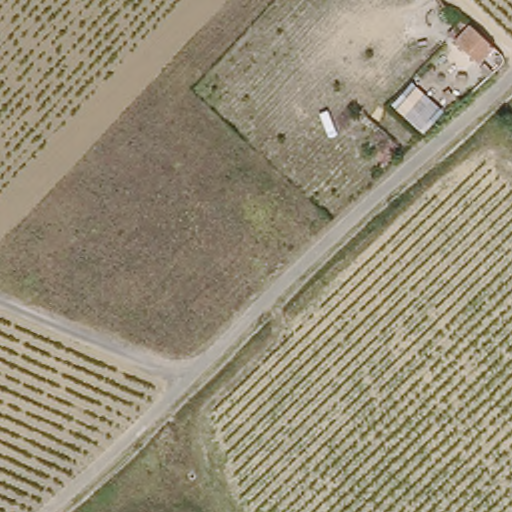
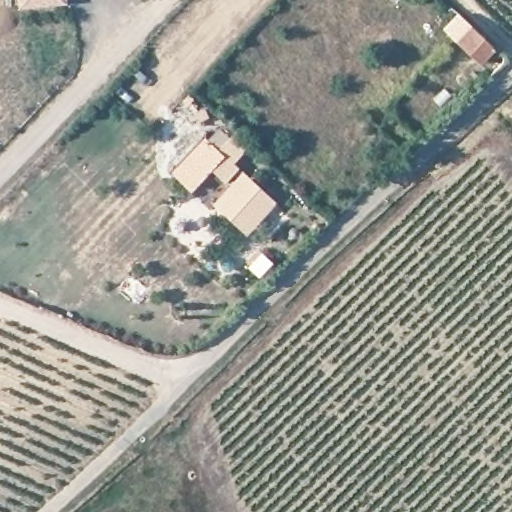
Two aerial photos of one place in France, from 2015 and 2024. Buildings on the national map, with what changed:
new [(16,8),(16,0),(65,0),(65,3),(16,8)]
unchanged [(490,53),(475,71),(447,44),(461,28),(490,53)]
new [(211,203),(226,186),(208,169),(188,190),(170,172),(203,137),(207,142),(218,129),(244,152),(233,162),(274,202),(245,233),(211,203)]
demolished [(175,438),(194,458),(180,471),(162,450),(175,438)]

